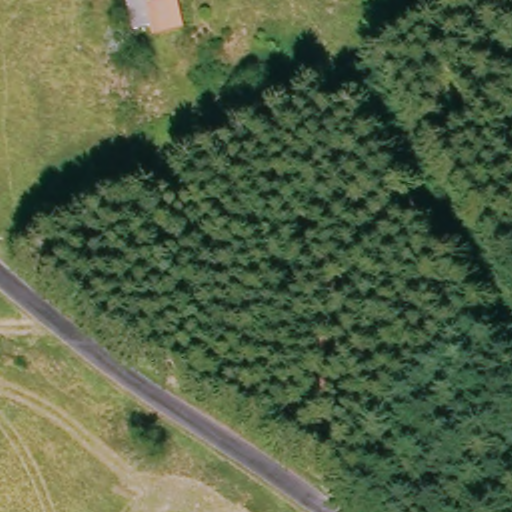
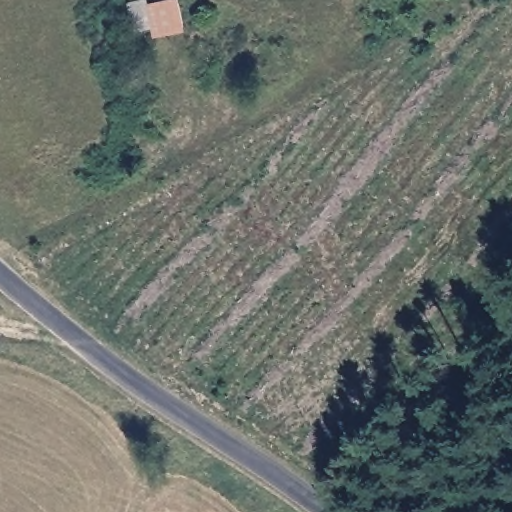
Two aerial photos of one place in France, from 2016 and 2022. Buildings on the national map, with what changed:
unchanged [(148,29),(129,30),(120,1),(125,0),(144,0),(144,3),(157,0),(176,0),(185,33),(148,40),(148,29)]

